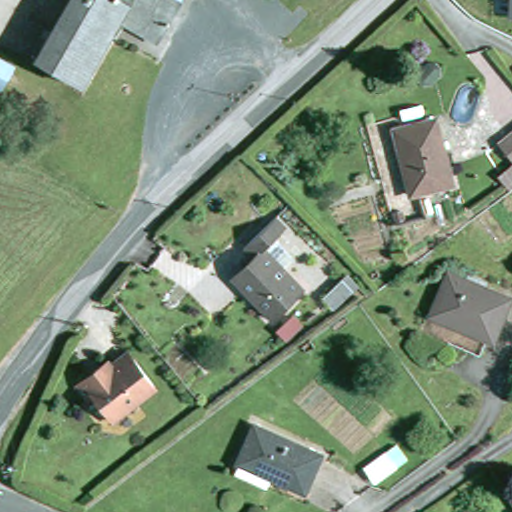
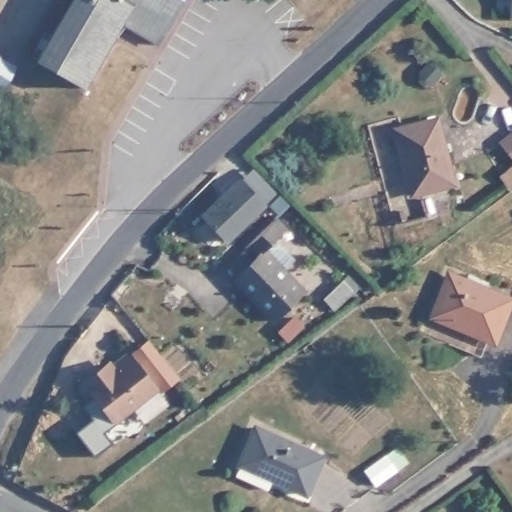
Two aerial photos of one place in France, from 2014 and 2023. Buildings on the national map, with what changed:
unchanged [(116,40),(87,91),(43,65),(81,0),(119,0),(120,0),(192,0),(189,5),(164,47),(132,29),(120,44),(116,40)]
unchanged [(509,16),(509,0),(512,0),(512,17),(509,16)]
unchanged [(10,88),(0,82),(0,54),(24,67),(10,88)]
unchanged [(399,129),(441,119),(455,186),(412,196),(399,129)]
unchanged [(506,145),(512,140),(512,153),(506,145)]
new [(268,205),(227,241),(200,214),(240,175),(268,205)]
unchanged [(245,286),(265,267),(257,258),(256,256),(290,226),(290,227),(299,237),(277,257),(312,299),(286,320),(294,330),(279,343),(271,333),(279,327),(245,286)]
unchanged [(495,334),(485,353),(436,332),(462,278),(512,300),(512,309),(500,337),(495,334)]
unchanged [(96,397),(90,402),(79,387),(104,369),(110,376),(117,371),(115,368),(133,354),(139,362),(160,393),(117,425),(98,400),(96,397)]
unchanged [(324,454),(307,491),(278,478),(273,489),(240,474),(246,461),(264,426),(324,454)]
unchanged [(387,453),(399,468),(377,485),(365,469),(387,453)]

